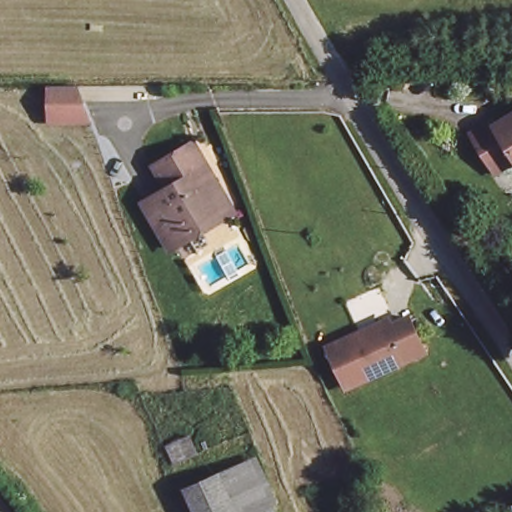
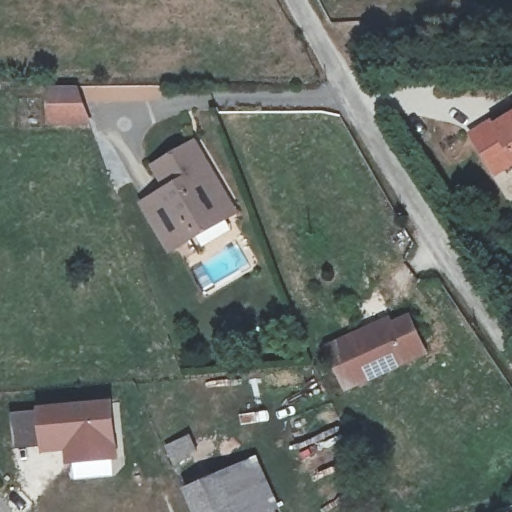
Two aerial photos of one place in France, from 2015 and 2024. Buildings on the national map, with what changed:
new [(70,80),(84,115),(45,116),(43,81),(70,80)]
unchanged [(493,174),(468,136),(488,121),(492,129),(512,114),(512,160),(493,174)]
unchanged [(226,204),(189,229),(193,236),(174,248),(144,206),(168,192),(154,170),(194,141),(223,187),(231,200),(226,204)]
unchanged [(332,345),(354,333),(362,330),(369,334),(414,313),(431,347),(409,358),(408,358),(353,383),(341,362),(332,345)]
new [(64,451),(41,453),(40,446),(13,448),(11,413),(36,410),(36,406),(112,398),(118,457),(65,463),(64,451)]
unchanged [(191,485),(256,461),(278,512),(201,512),(191,485)]

